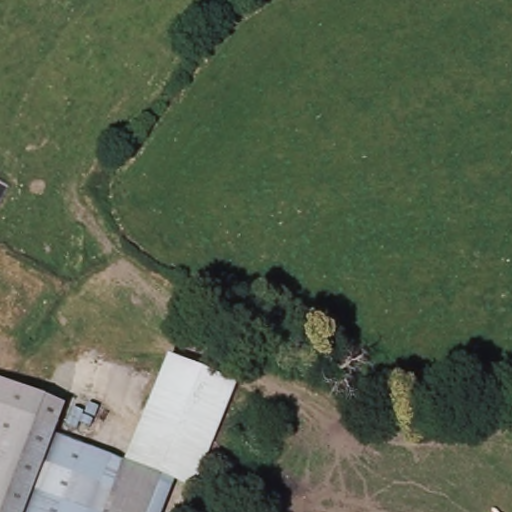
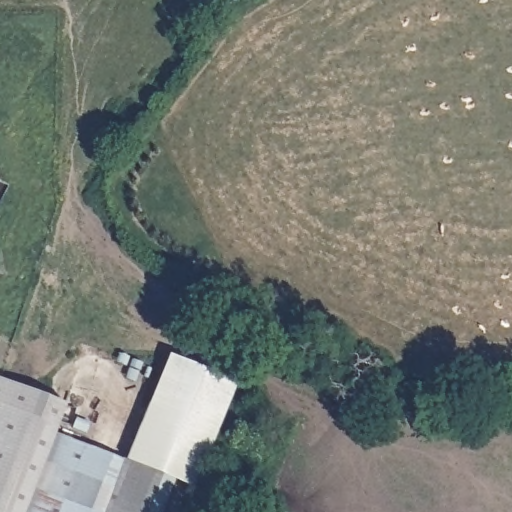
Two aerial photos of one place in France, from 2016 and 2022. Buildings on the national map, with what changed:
unchanged [(176,475),(128,457),(164,359),(236,386),(193,494),(171,487),(176,475)]
unchanged [(55,430),(128,457),(176,475),(171,487),(162,512),(0,512),(0,377),(69,401),(55,430)]

